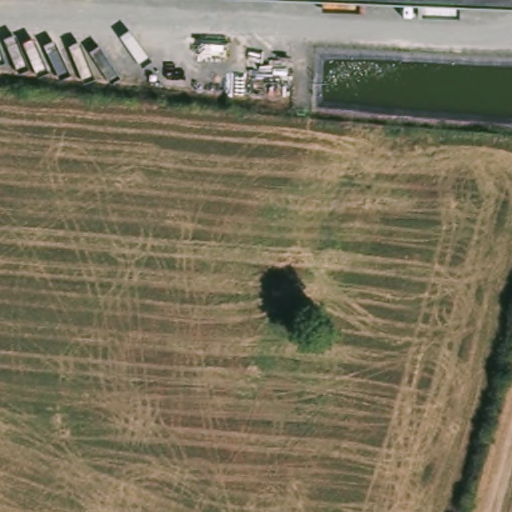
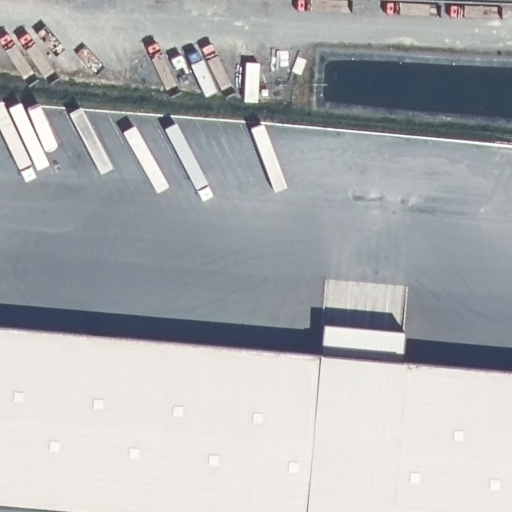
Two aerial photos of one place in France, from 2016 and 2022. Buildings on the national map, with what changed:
unchanged [(512,0),(512,2),(450,0),(512,0)]
new [(512,512),(97,512),(0,503),(0,327),(512,371),(512,512)]

